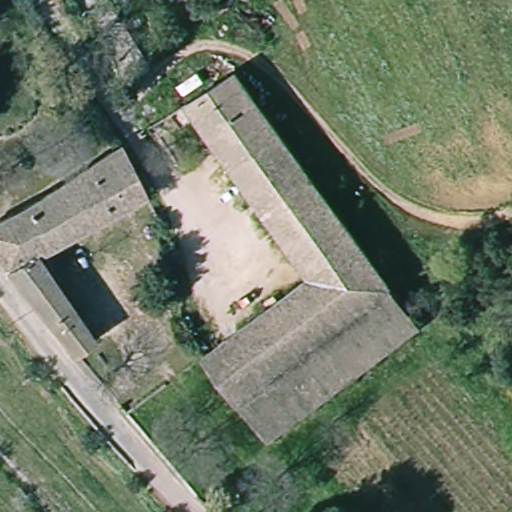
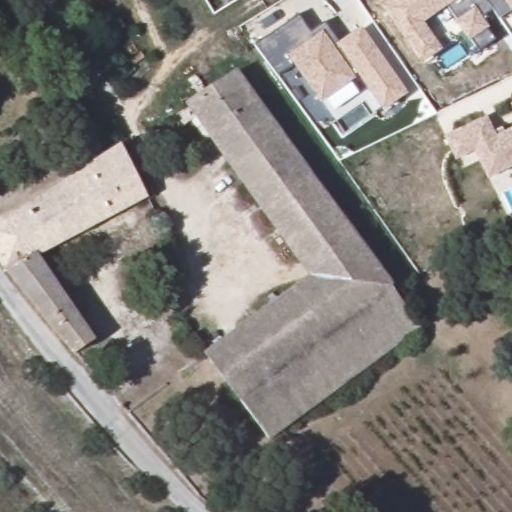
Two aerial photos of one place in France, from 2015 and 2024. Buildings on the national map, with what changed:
new [(471,39),(468,41),(454,21),(457,20),(447,6),(423,23),(441,49),(420,64),(379,5),(387,0),(512,0),(512,11),(511,10),(499,19),(492,9),(482,17),(489,26),(487,28),(495,40),(479,51),(471,39)]
new [(382,110),(357,73),(354,76),(356,78),(320,103),(293,64),(277,76),(255,44),(298,15),(310,33),(324,22),(338,41),(361,27),(408,93),(382,110)]
unchanged [(312,288),(187,115),(235,83),(392,298),(420,337),(269,449),(208,365),(312,288)]
new [(512,100),(512,104),(510,101),(512,100)]
new [(472,145),(454,154),(443,133),(483,114),(493,134),(512,124),(512,160),(486,173),(472,145)]
unchanged [(70,357),(65,350),(52,335),(24,303),(12,289),(3,280),(0,275),(0,227),(123,156),(149,204),(35,263),(97,349),(76,363),(70,357)]

